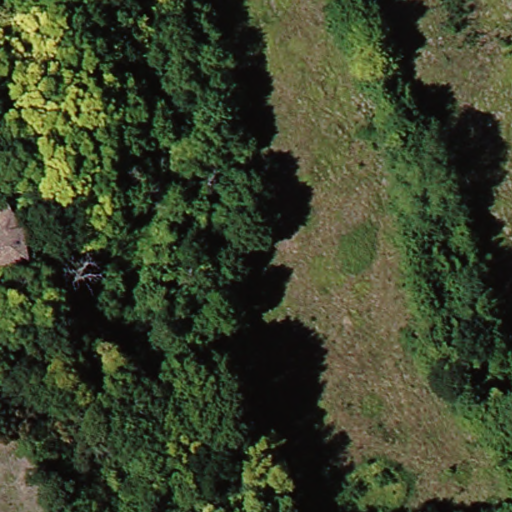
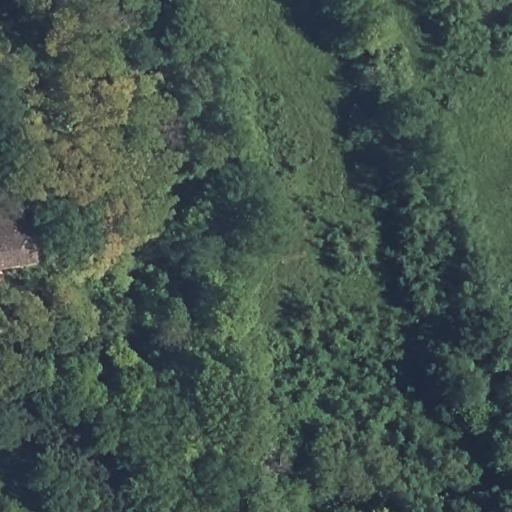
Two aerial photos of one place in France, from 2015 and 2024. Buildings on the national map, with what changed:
unchanged [(30,233),(35,232),(39,261),(0,269),(0,206),(2,210),(22,206),(30,233)]

